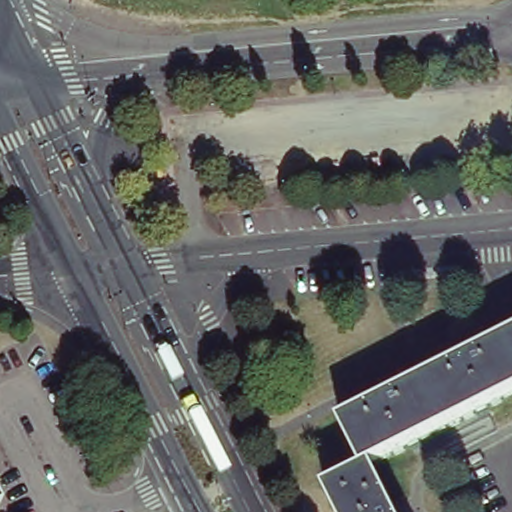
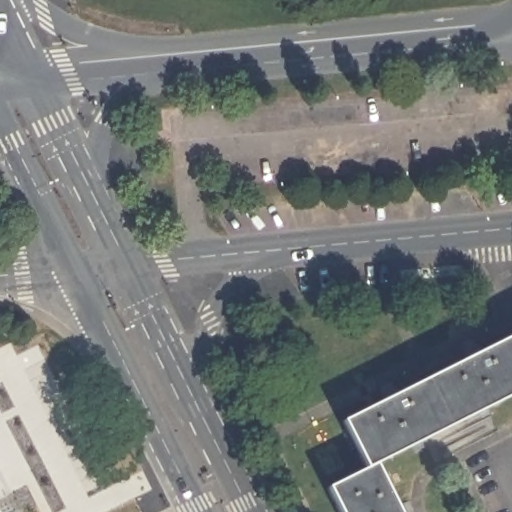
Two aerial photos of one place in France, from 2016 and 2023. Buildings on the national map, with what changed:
unchanged [(365,468),(342,423),(512,337),(512,394),(372,465),(396,512),(338,512),(325,487),(365,468)]

